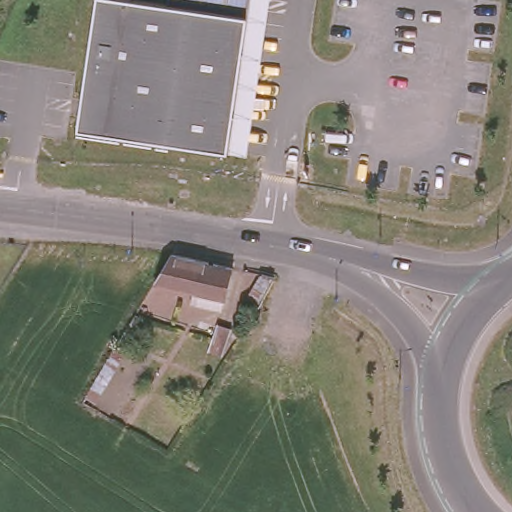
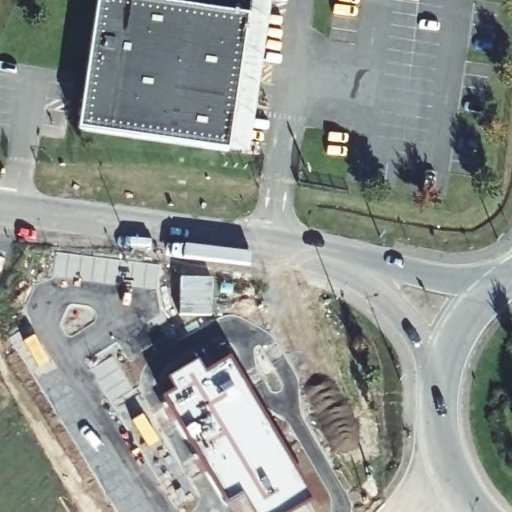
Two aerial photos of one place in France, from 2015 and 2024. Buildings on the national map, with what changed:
unchanged [(94,0),(123,0),(165,6),(166,0),(248,0),(226,153),(75,131),(94,0)]
unchanged [(245,156),(226,153),(248,0),(267,0),(245,156)]
demolished [(168,258),(230,271),(229,275),(224,300),(220,300),(215,317),(192,312),(195,297),(150,288),(165,263),(168,258)]
demolished [(240,301),(255,276),(268,279),(253,304),(240,301)]
demolished [(140,322),(89,408),(78,402),(130,316),(140,322)]
demolished [(225,326),(217,356),(200,350),(207,322),(225,326)]
new [(162,400),(175,392),(167,380),(197,361),(204,374),(227,359),(310,502),(295,512),(227,512),(223,505),(162,400)]

